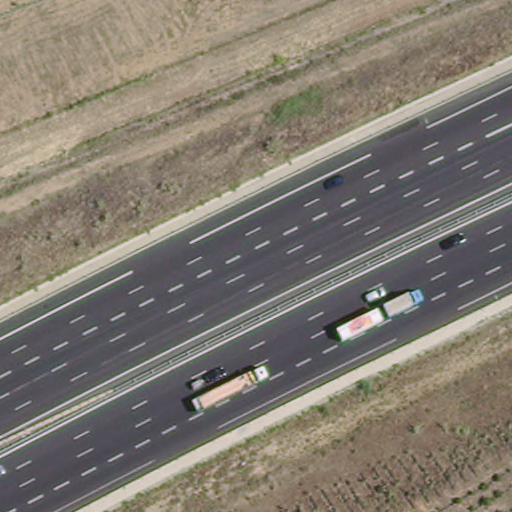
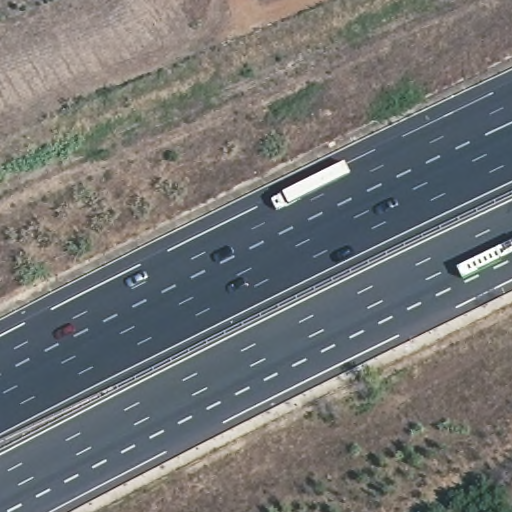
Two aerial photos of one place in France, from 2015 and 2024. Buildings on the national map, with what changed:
[]

